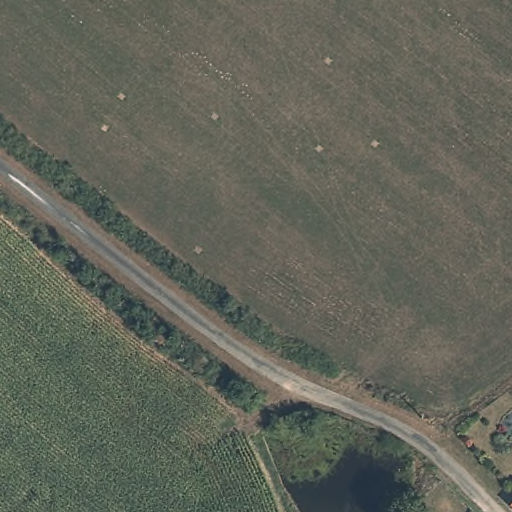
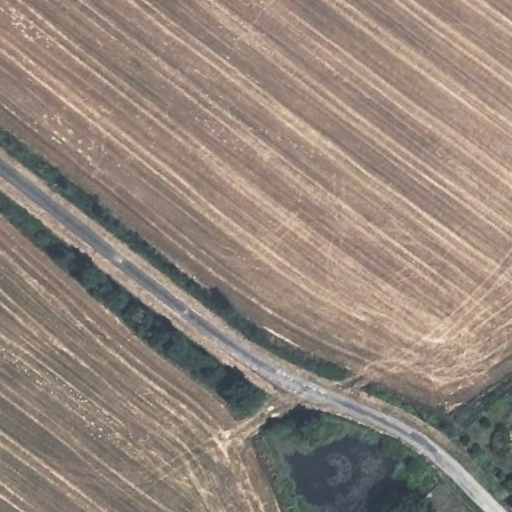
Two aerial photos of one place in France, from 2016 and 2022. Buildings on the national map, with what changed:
unchanged [(512,498),(512,506),(508,501),(512,498)]

